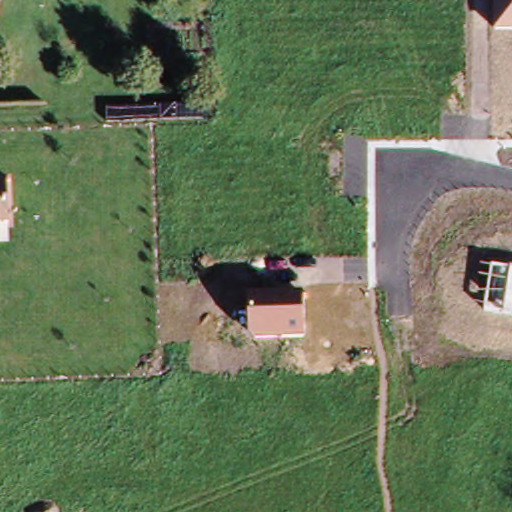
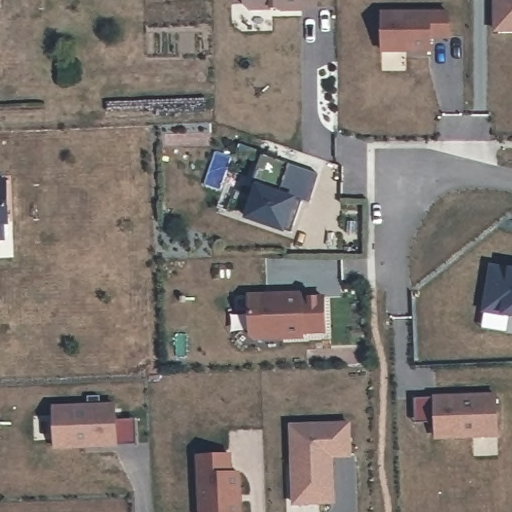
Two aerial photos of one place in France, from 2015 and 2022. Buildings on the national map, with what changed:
new [(243,0),(316,0),(316,9),(301,10),(301,11),(282,11),(282,9),(249,9),(243,5),(243,0)]
unchanged [(493,32),(493,0),(512,0),(512,31),(493,32)]
new [(383,14),(449,14),(449,38),(430,39),(430,52),(383,52),(383,14)]
new [(259,188),(251,185),(261,154),(319,174),(308,204),(299,201),(289,233),(248,219),(259,188)]
unchanged [(0,179),(3,179),(5,225),(0,225),(0,179)]
unchanged [(491,266),(512,268),(512,315),(484,310),(491,266)]
unchanged [(248,339),(246,295),(303,292),(305,337),(248,339)]
demolished [(65,358),(63,381),(4,382),(8,361),(65,358)]
new [(497,394),(498,434),(437,437),(435,396),(497,394)]
new [(114,405),(116,446),(55,448),(53,408),(114,405)]
new [(291,425),(350,423),(351,455),(334,456),(336,501),(295,504),(291,425)]
new [(230,474),(238,474),(240,512),(199,512),(197,457),(229,456),(230,474)]

